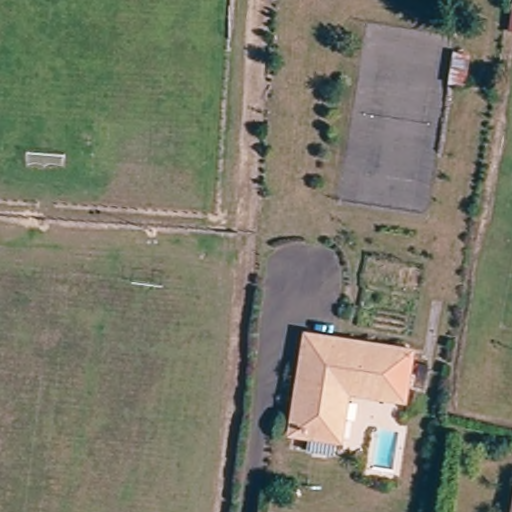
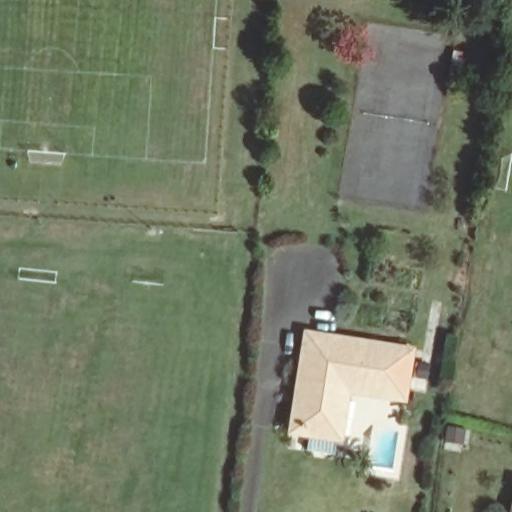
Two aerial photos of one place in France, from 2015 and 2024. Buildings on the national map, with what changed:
unchanged [(512,10),(512,33),(508,33),(512,10)]
unchanged [(300,419),(306,385),(310,358),(315,334),(415,351),(407,394),(350,383),(348,393),(354,395),(346,436),(316,430),(298,427),(300,419)]

